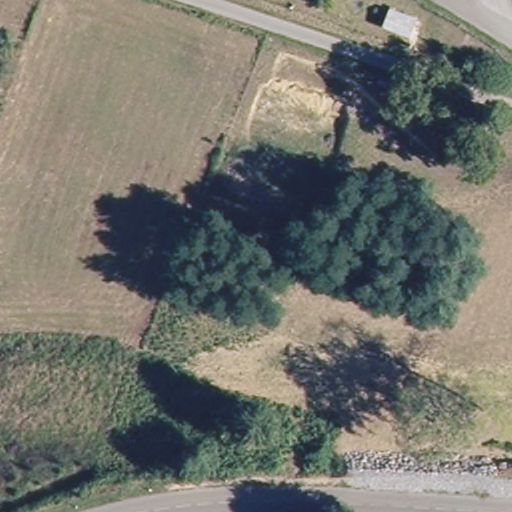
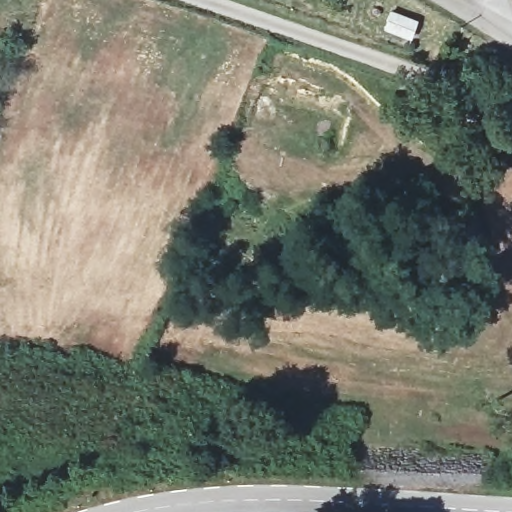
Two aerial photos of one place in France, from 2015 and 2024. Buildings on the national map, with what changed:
unchanged [(407,25),(382,11),(386,0),(405,0),(417,6),(407,25)]

